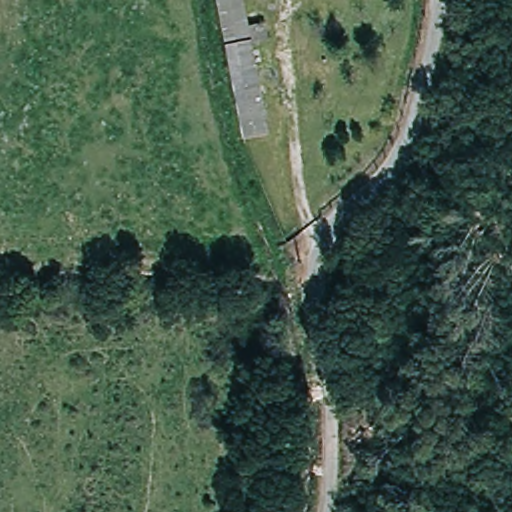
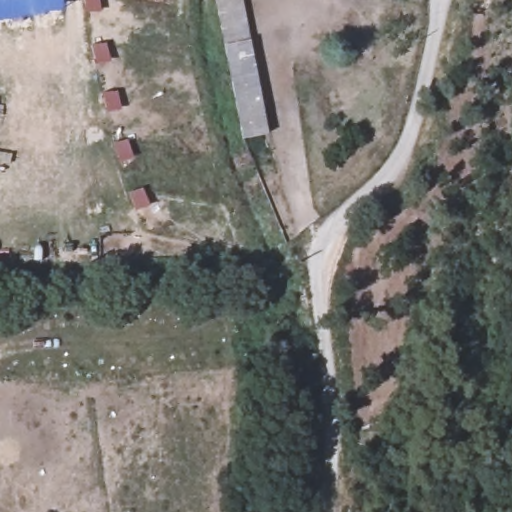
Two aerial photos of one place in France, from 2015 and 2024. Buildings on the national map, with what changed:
new [(63,11),(0,19),(0,0),(63,0),(63,11)]
unchanged [(247,24),(265,21),(268,42),(251,45),(270,134),(242,140),(217,0),(243,0),(247,24)]

